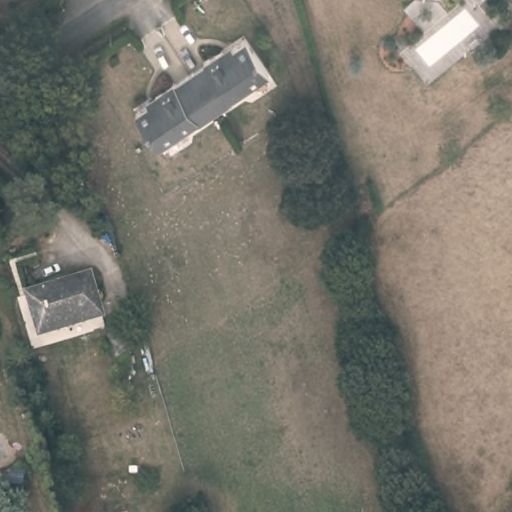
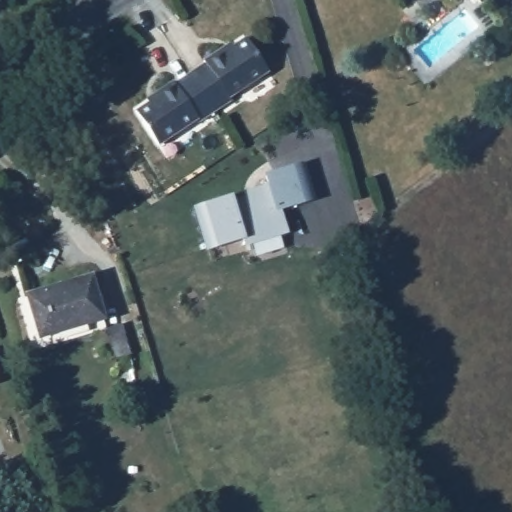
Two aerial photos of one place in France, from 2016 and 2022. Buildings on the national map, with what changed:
unchanged [(145,102),(142,98),(167,82),(169,84),(186,73),(203,61),(201,59),(226,43),(229,46),(242,37),(266,74),(228,99),(230,102),(203,119),(195,124),(194,122),(156,147),(132,110),(145,102)]
new [(232,203),(246,199),(245,194),(255,191),(269,187),(266,176),(302,165),(312,200),(281,209),(288,232),(244,245),(242,239),(208,249),(196,209),(231,198),(232,203)]
unchanged [(40,337),(27,295),(85,277),(99,317),(40,337)]

